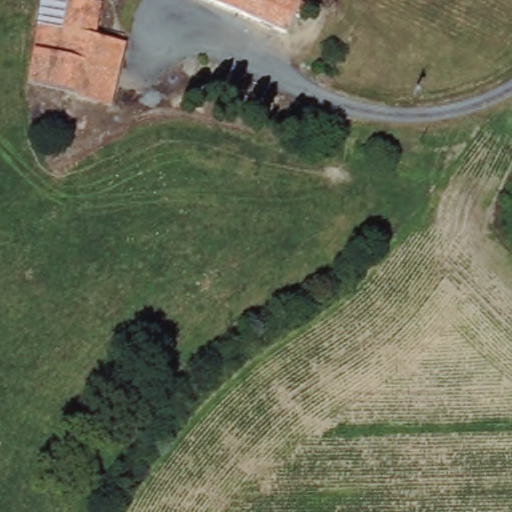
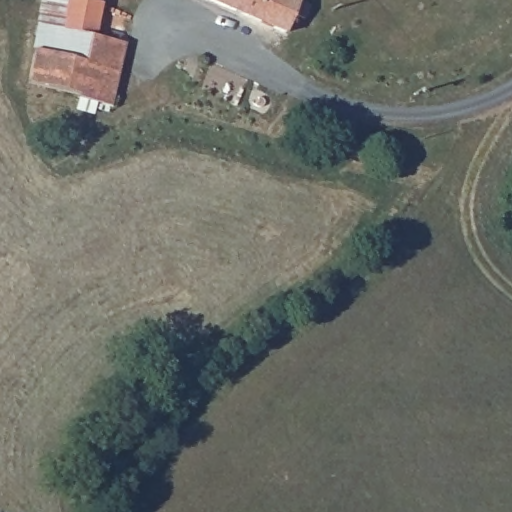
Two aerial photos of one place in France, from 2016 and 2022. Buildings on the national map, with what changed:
unchanged [(112,106),(74,99),(75,94),(27,81),(34,52),(29,50),(41,0),(76,0),(102,6),(96,36),(125,45),(112,106)]
unchanged [(228,8),(206,0),(231,0),(228,8)]
unchanged [(302,0),(316,6),(310,18),(297,14),(290,31),(228,8),(231,0),(302,0)]

